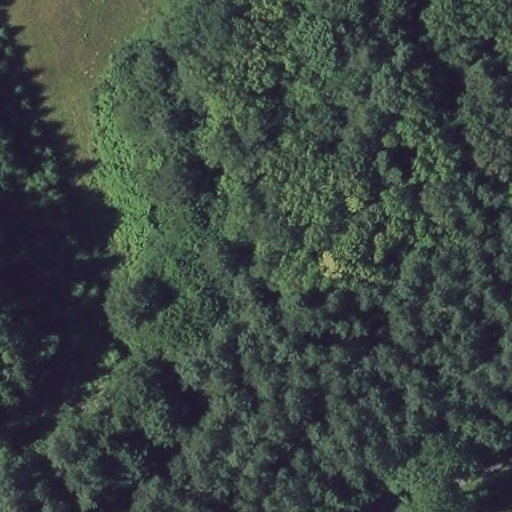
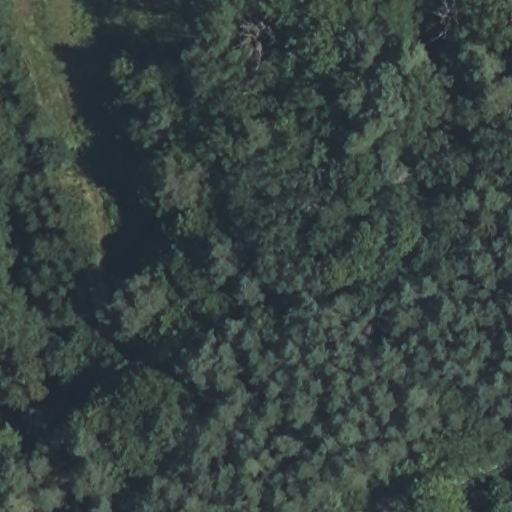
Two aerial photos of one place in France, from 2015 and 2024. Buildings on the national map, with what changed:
[]

